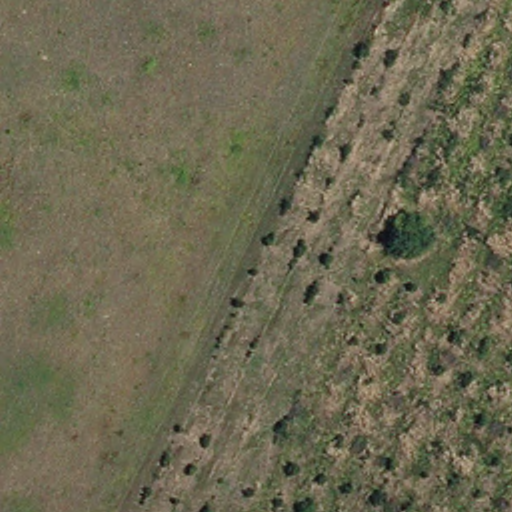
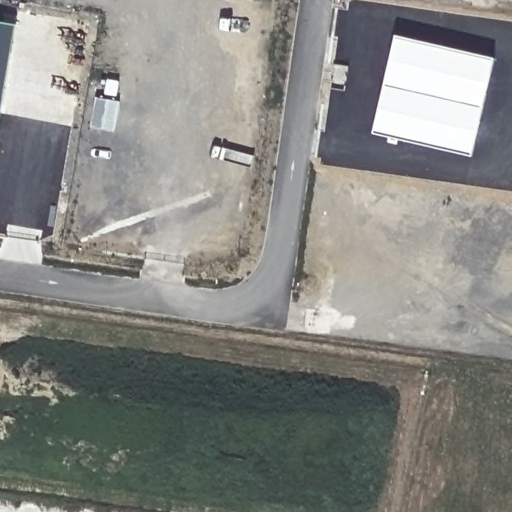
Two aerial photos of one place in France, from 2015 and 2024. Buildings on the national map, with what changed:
new [(16,26),(0,117),(0,23),(16,26)]
new [(395,36),(495,60),(471,157),(373,133),(395,36)]

